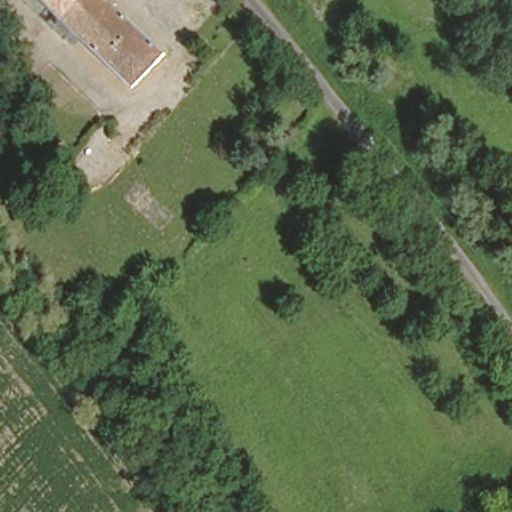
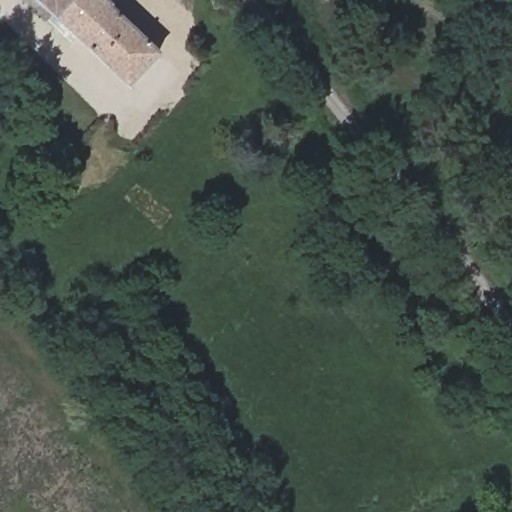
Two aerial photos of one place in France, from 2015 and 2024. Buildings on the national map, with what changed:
unchanged [(104,0),(146,41),(118,70),(44,0),(104,0)]

